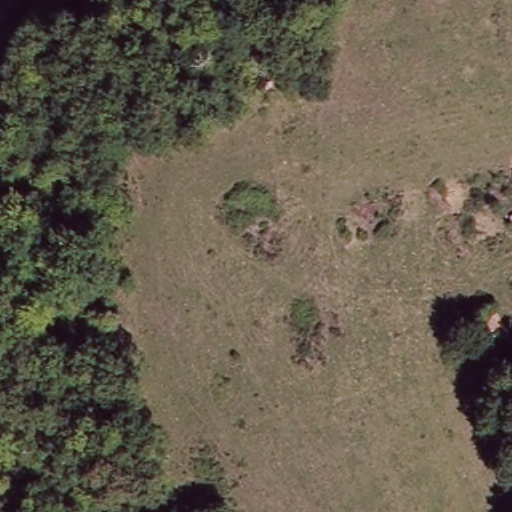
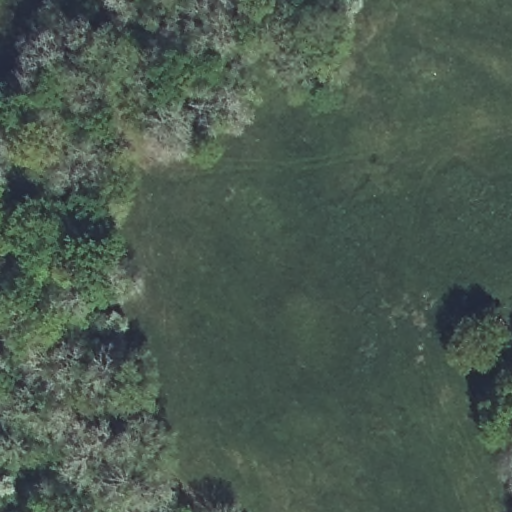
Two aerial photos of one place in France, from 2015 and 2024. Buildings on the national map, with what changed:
unchanged [(512,327),(485,336),(475,307),(503,300),(512,326),(512,327)]

